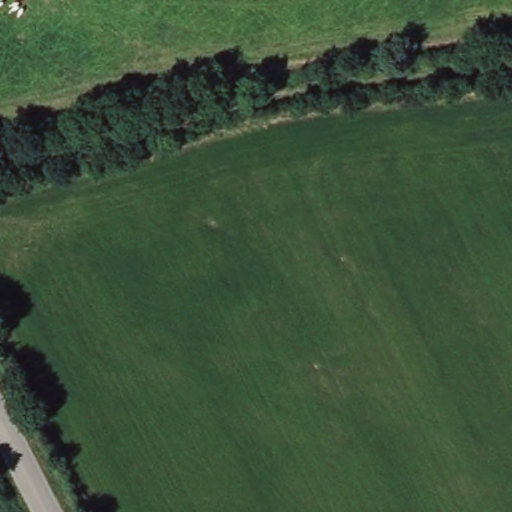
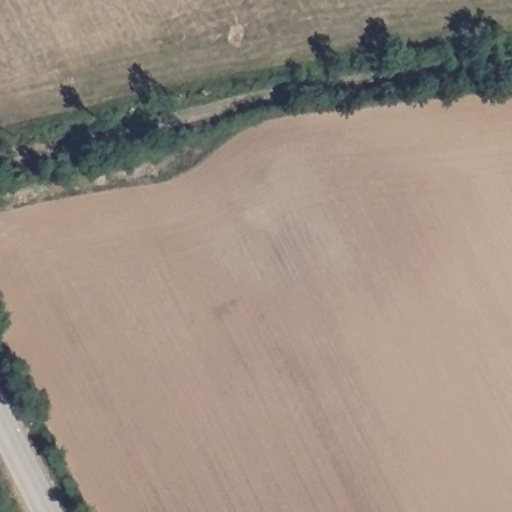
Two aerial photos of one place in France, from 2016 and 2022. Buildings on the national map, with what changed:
[]

